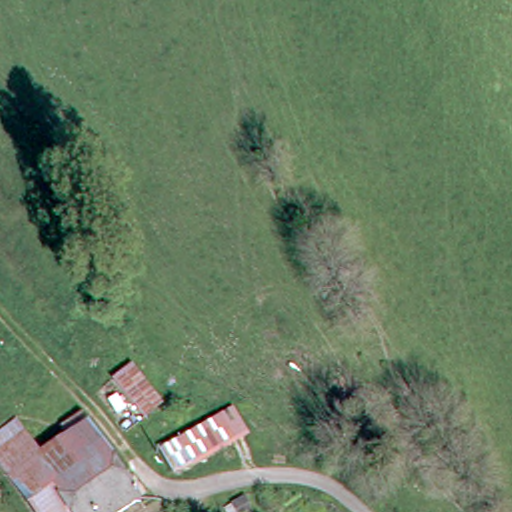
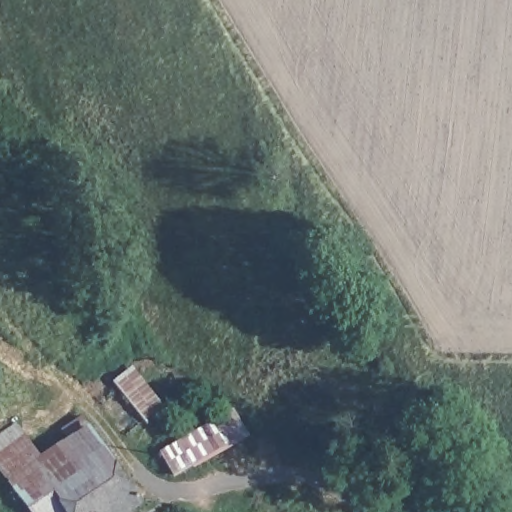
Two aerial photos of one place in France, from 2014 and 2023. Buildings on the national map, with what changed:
unchanged [(146,422),(128,395),(120,383),(137,372),(162,410),(161,411),(146,422)]
unchanged [(172,475),(158,455),(195,430),(219,414),(229,408),(241,425),(242,428),(220,443),(172,475)]
unchanged [(5,479),(38,458),(69,439),(60,425),(79,413),(137,503),(123,512),(26,512),(5,479)]
unchanged [(0,431),(15,420),(38,458),(5,479),(0,471),(0,431)]

